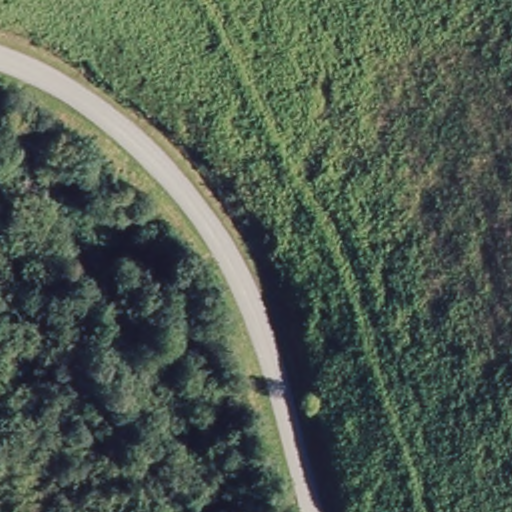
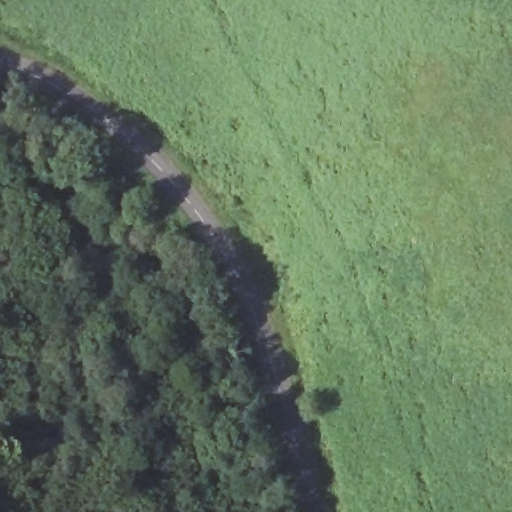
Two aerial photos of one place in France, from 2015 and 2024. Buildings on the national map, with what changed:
[]

